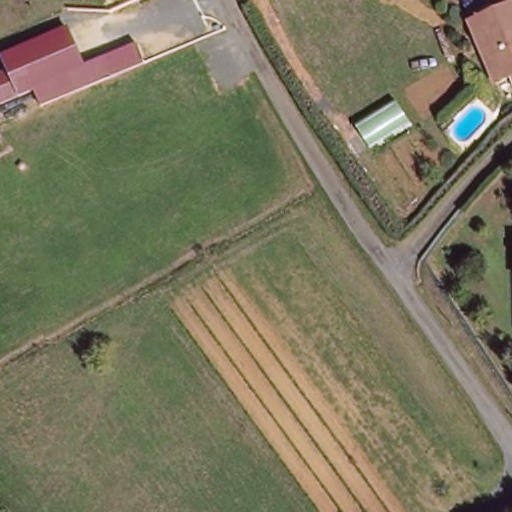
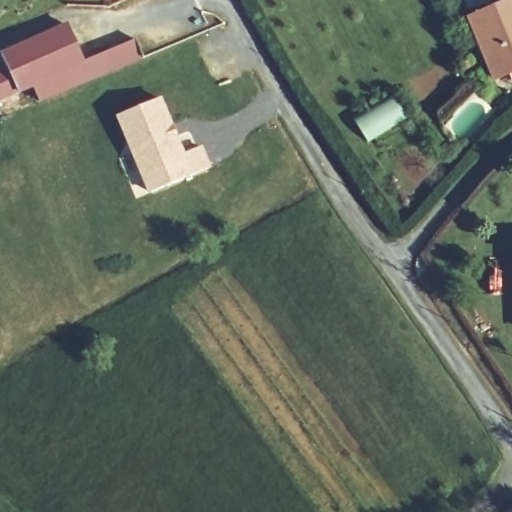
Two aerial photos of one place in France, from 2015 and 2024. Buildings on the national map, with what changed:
unchanged [(103,0),(105,0),(103,1),(103,0)]
unchanged [(493,84),(464,19),(506,0),(512,0),(512,81),(509,76),(493,84)]
unchanged [(4,70),(0,56),(0,55),(66,26),(83,64),(136,41),(141,55),(35,100),(30,88),(0,101),(0,71),(4,70)]
new [(406,116),(370,140),(353,115),(391,91),(406,116)]
new [(156,99),(179,154),(197,146),(206,168),(146,192),(114,116),(156,99)]

